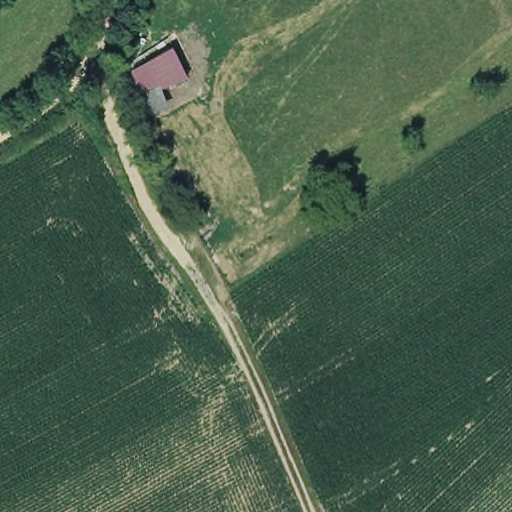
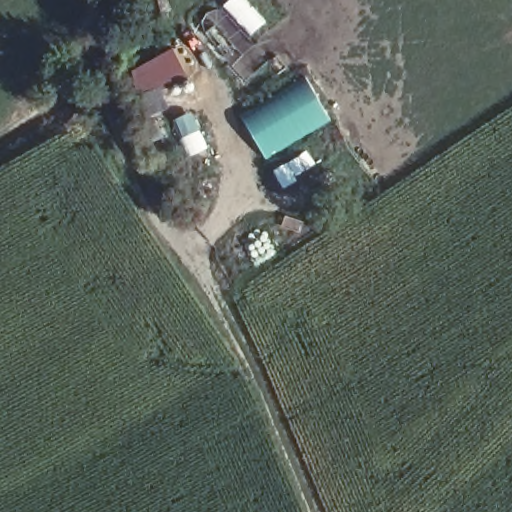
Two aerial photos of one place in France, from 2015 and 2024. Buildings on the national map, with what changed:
unchanged [(177,77),(163,85),(166,106),(146,112),(130,69),(165,47),(177,77)]
new [(329,117),(264,157),(241,115),(304,76),(329,117)]

